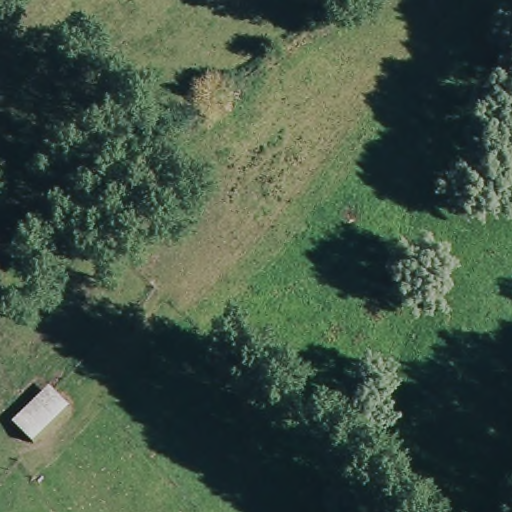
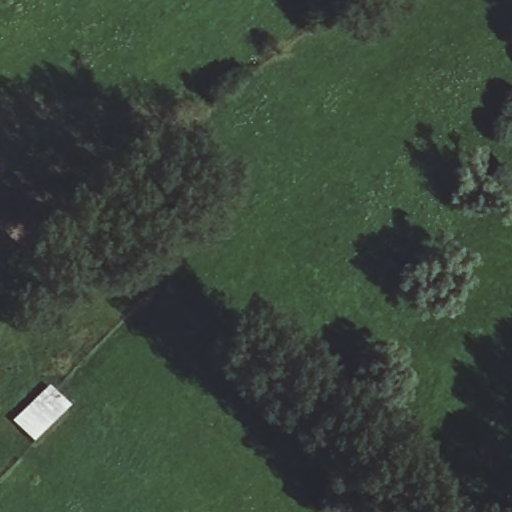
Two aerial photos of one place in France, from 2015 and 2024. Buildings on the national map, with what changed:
unchanged [(45,394),(65,417),(35,444),(13,425),(45,394)]

